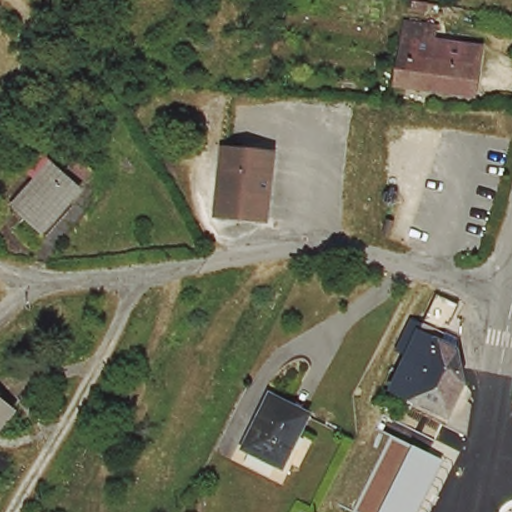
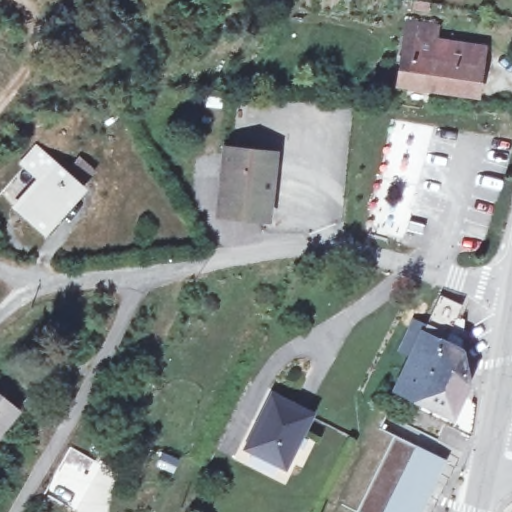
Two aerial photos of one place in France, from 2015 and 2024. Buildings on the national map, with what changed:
unchanged [(443,25),(441,43),(483,50),(477,95),(403,84),(405,64),(408,50),(412,21),(443,25)]
unchanged [(20,165),(32,149),(78,188),(41,232),(14,208),(37,180),(20,165)]
unchanged [(268,225),(218,222),(222,155),(272,158),(268,225)]
unchanged [(464,325),(462,356),(465,369),(470,390),(455,422),(425,409),(417,405),(396,394),(426,329),(440,302),(460,312),(456,321),(462,324),(464,325)]
unchanged [(250,450),(276,400),(314,420),(286,469),(250,450)]
unchanged [(0,439),(0,402),(17,416),(0,439)]
unchanged [(421,512),(357,512),(356,511),(392,436),(445,460),(421,512)]

